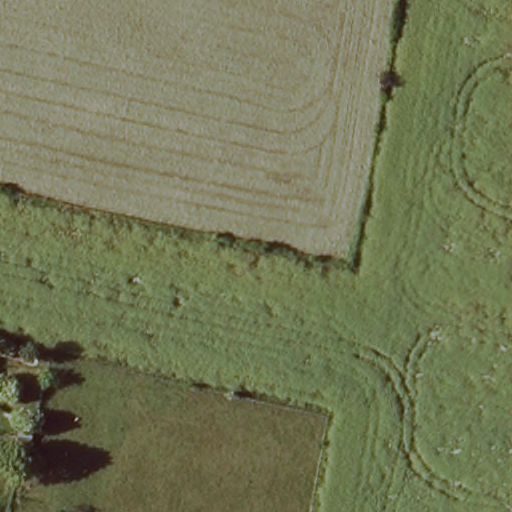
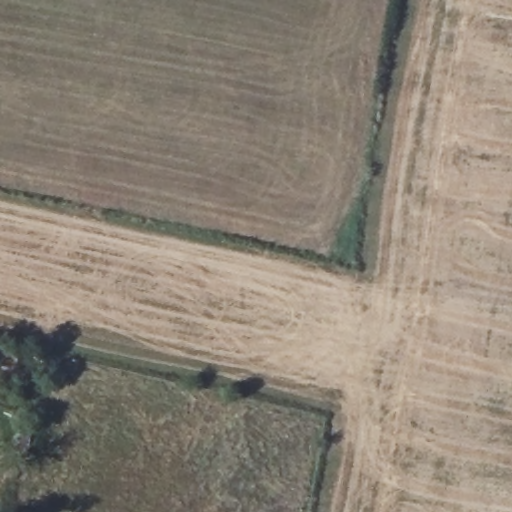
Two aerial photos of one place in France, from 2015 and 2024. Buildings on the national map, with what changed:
unchanged [(15,431),(34,435),(29,461),(0,456),(0,428),(15,431)]

